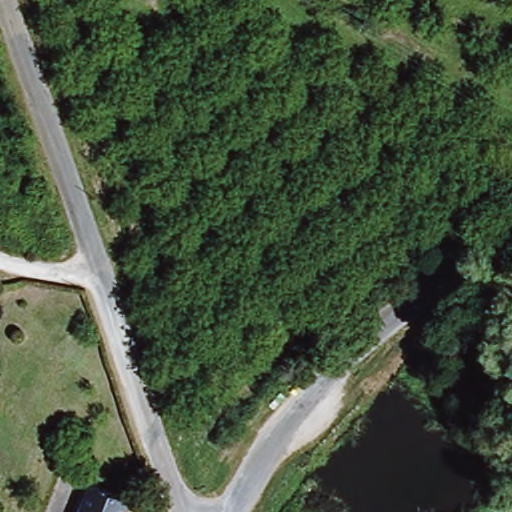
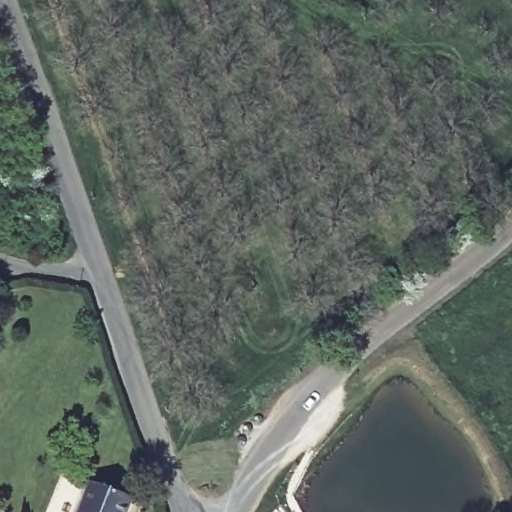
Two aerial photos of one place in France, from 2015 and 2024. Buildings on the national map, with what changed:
unchanged [(142,501),(150,504),(147,512),(83,512),(96,482),(142,501)]

